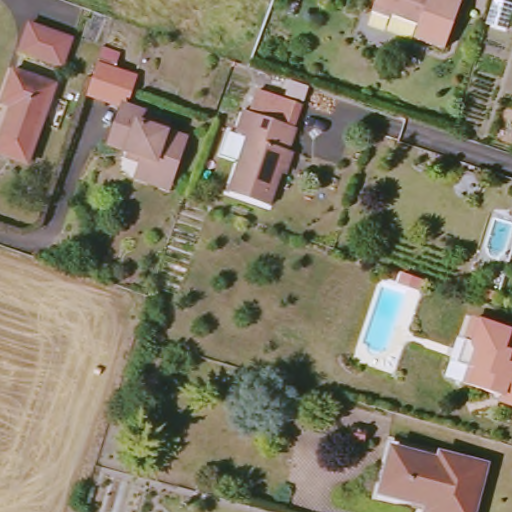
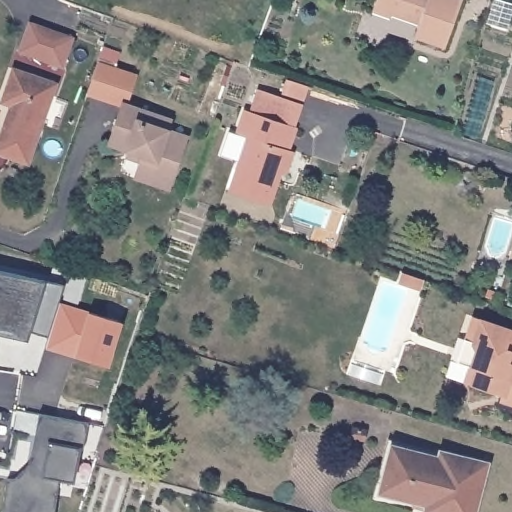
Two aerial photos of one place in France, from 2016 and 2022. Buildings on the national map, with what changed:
unchanged [(413,36),(419,22),(393,11),(391,17),(370,9),(374,0),(462,0),(442,49),(413,36)]
unchanged [(75,38),(65,66),(22,52),(32,24),(75,38)]
unchanged [(137,80),(132,94),(127,107),(94,95),(97,83),(102,69),(137,80)]
unchanged [(31,166),(0,156),(0,154),(15,111),(5,107),(16,76),(56,89),(31,166)]
unchanged [(136,185),(141,169),(130,165),(132,158),(112,151),(124,111),(171,126),(167,138),(187,145),(172,188),(170,196),(136,185)]
unchanged [(297,130),(290,150),(297,153),(291,169),(285,168),(272,207),(231,193),(249,142),(238,137),(246,113),(297,130)]
new [(49,337),(32,332),(29,340),(25,339),(25,338),(12,335),(12,332),(0,329),(0,270),(66,285),(49,337)]
new [(77,357),(46,347),(60,303),(122,321),(111,362),(109,366),(77,357)]
unchanged [(474,315),(512,327),(512,373),(459,357),(474,315)]
unchanged [(509,400),(511,394),(453,375),(459,357),(512,373),(512,401),(509,400)]
new [(83,449),(79,448),(75,482),(61,480),(56,512),(3,512),(7,479),(15,478),(29,465),(32,454),(40,414),(89,423),(83,449)]
unchanged [(426,508),(378,493),(392,449),(436,463),(440,455),(485,470),(472,512),(425,512),(426,508)]

